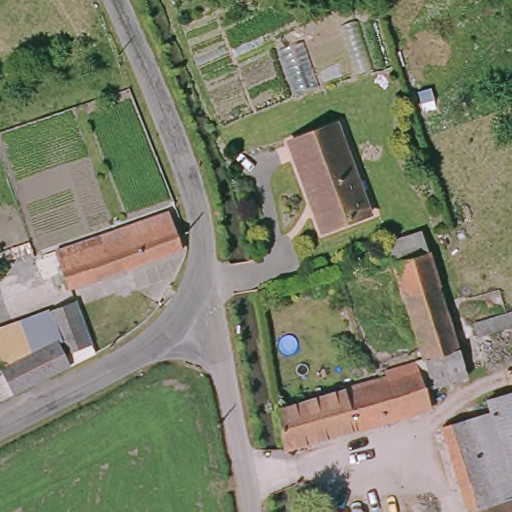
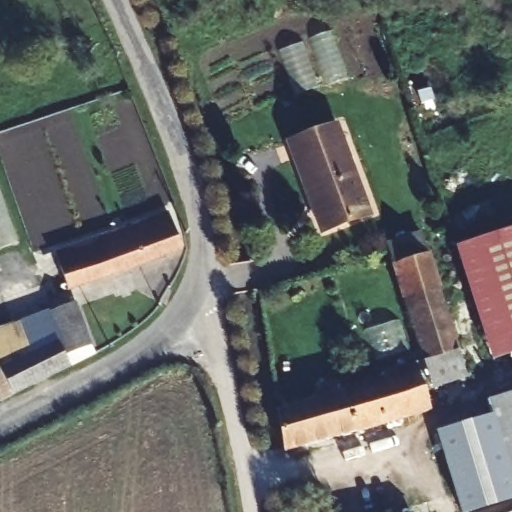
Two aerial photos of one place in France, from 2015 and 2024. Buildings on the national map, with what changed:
unchanged [(335,127),(368,214),(325,235),(287,146),(335,127)]
unchanged [(99,249),(95,236),(156,219),(167,257),(54,290),(45,265),(99,249)]
new [(455,242),(512,228),(512,352),(485,359),(455,242)]
unchanged [(376,377),(375,372),(421,357),(395,270),(431,260),(455,350),(461,376),(418,387),(422,402),(286,446),(278,410),(376,377)]
unchanged [(19,324),(72,303),(92,352),(70,364),(13,395),(0,403),(0,329),(19,324)]
demolished [(512,329),(477,339),(473,325),(512,314),(512,329)]
unchanged [(500,397),(512,394),(512,512),(473,512),(472,511),(468,512),(456,512),(436,435),(502,414),(500,397)]

